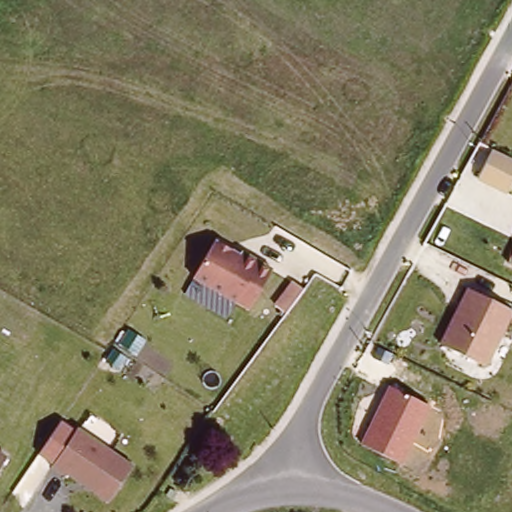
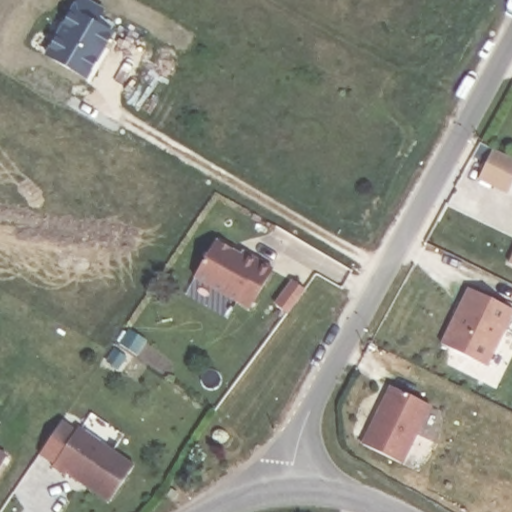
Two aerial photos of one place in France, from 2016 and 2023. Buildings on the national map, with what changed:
new [(85,0),(103,10),(96,23),(115,34),(89,80),(47,55),(80,0),(85,0)]
unchanged [(489,148),(512,159),(512,180),(506,193),(474,179),(489,148)]
unchanged [(215,235),(240,250),(243,246),(272,264),(249,304),(193,271),(215,235)]
unchanged [(512,252),(512,263),(508,261),(512,252)]
unchanged [(467,288),(512,310),(512,312),(487,366),(441,345),(467,288)]
unchanged [(387,384),(431,407),(404,464),(360,441),(387,384)]
unchanged [(78,425),(134,463),(109,499),(68,471),(65,473),(52,464),(78,425)]
unchanged [(0,469),(0,450),(8,455),(0,469)]

